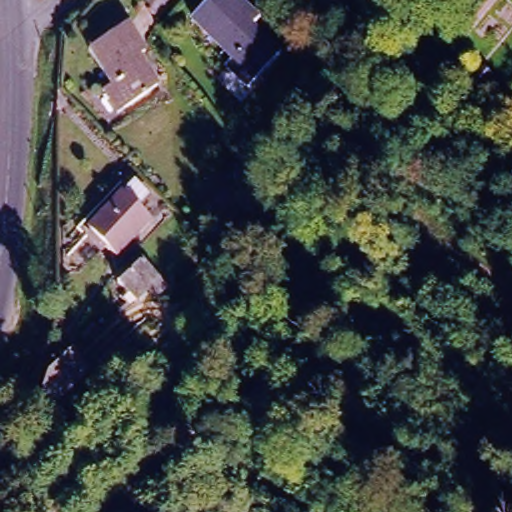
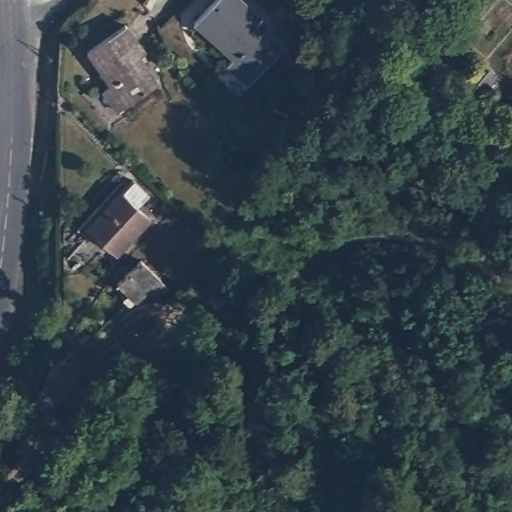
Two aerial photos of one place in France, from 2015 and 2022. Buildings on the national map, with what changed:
unchanged [(210,0),(231,0),(235,4),(253,24),(243,34),(260,50),(267,44),(275,52),(243,85),(224,67),(232,59),(191,20),(210,0)]
unchanged [(409,3),(406,0),(412,0),(409,3)]
unchanged [(116,13),(143,51),(133,60),(144,73),(150,69),(160,82),(119,113),(102,90),(111,82),(80,40),(116,13)]
unchanged [(127,193),(154,218),(119,255),(92,229),(127,193)]
unchanged [(145,263),(160,279),(137,302),(122,285),(145,263)]
unchanged [(65,361),(75,372),(59,388),(48,376),(65,361)]

